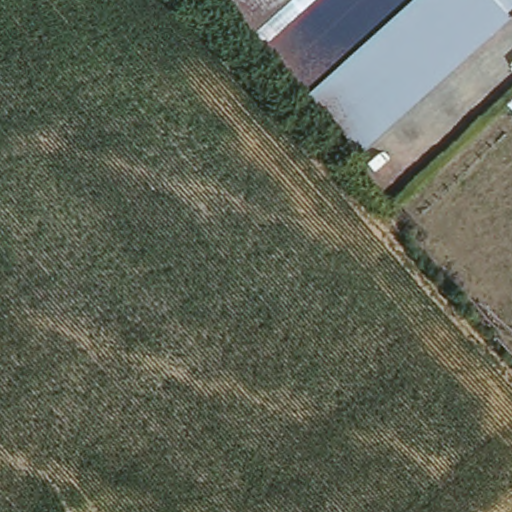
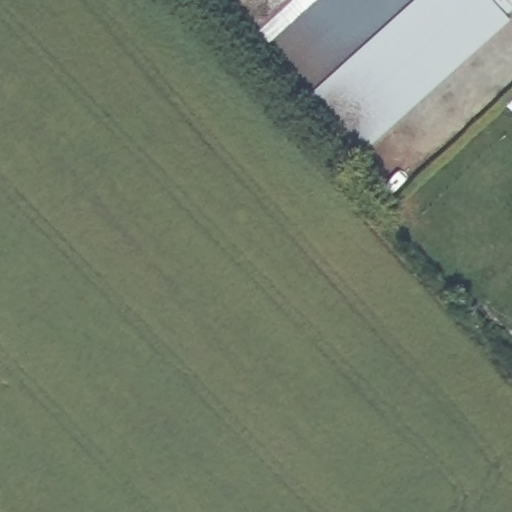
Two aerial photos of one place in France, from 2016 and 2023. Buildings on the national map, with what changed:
unchanged [(506,15),(509,20),(360,154),(223,0),(512,0),(512,10),(506,15)]
unchanged [(511,104),(512,102),(512,105),(511,104)]

